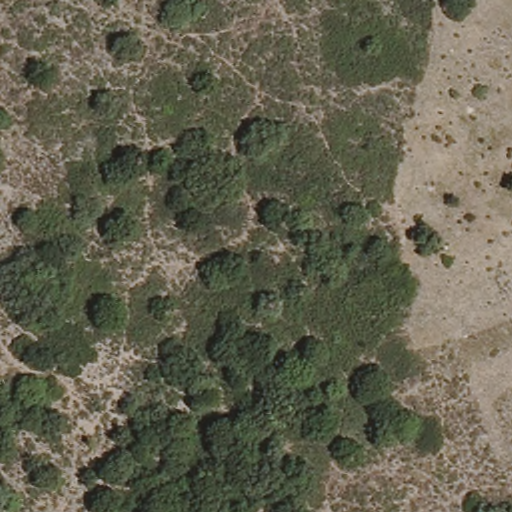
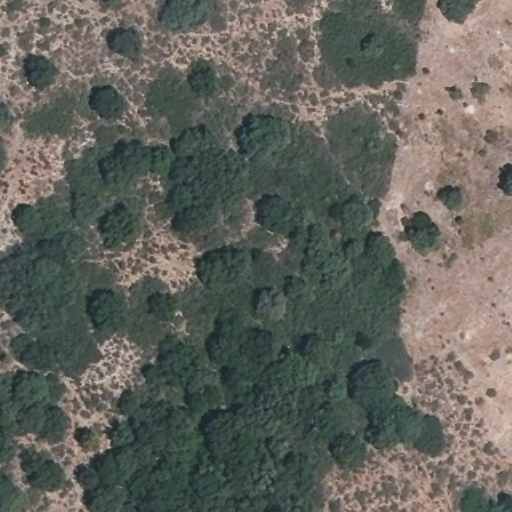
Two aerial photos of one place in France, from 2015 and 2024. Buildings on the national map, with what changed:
[]

